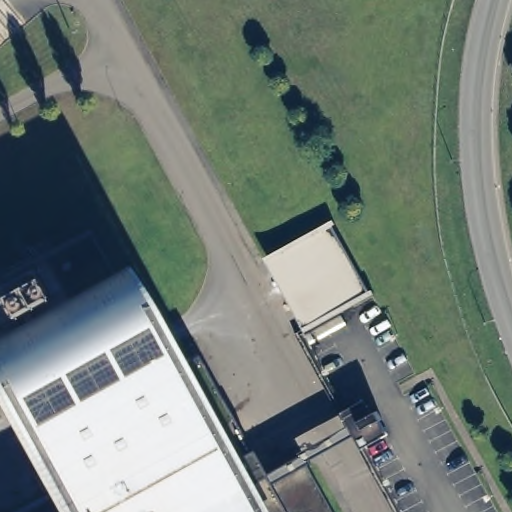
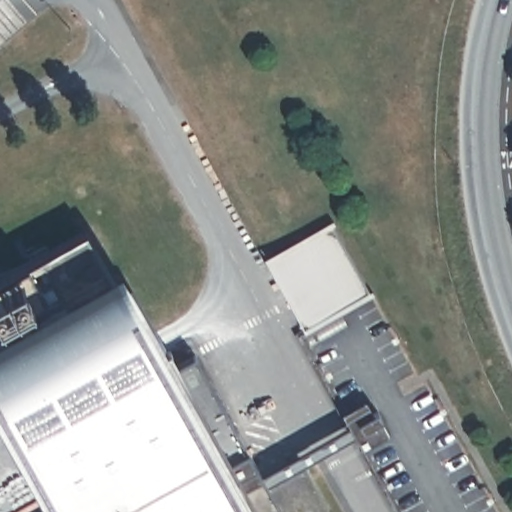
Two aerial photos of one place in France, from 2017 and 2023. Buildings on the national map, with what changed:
unchanged [(83,224),(172,362),(190,355),(269,473),(302,451),(333,512),(56,512),(0,400),(0,274),(83,224)]
unchanged [(272,255),(327,224),(365,293),(310,324),(272,255)]
unchanged [(367,416),(377,411),(382,419),(375,424),(382,438),(362,449),(343,416),(362,407),(367,416)]

